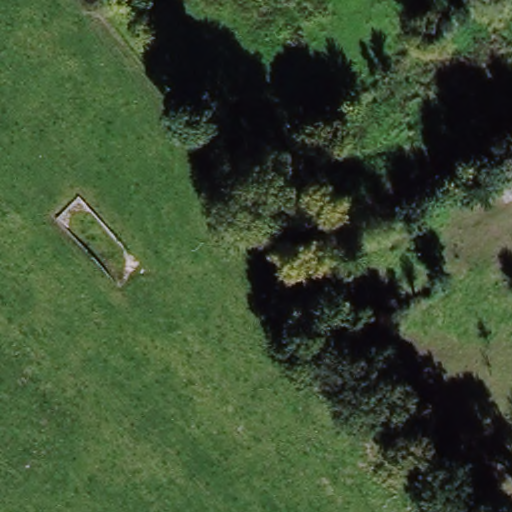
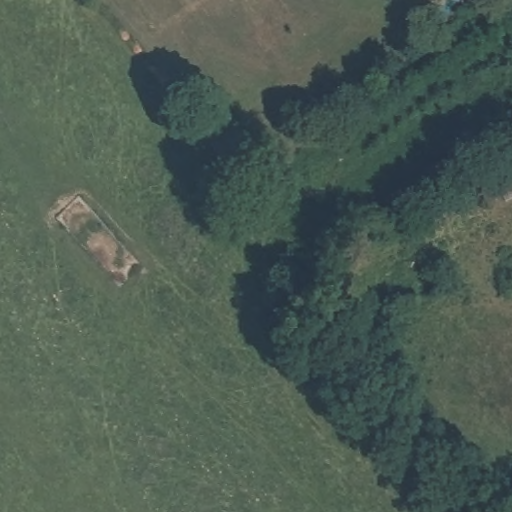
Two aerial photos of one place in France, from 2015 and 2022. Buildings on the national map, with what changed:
unchanged [(505,209),(492,184),(512,175),(512,205),(505,209)]

